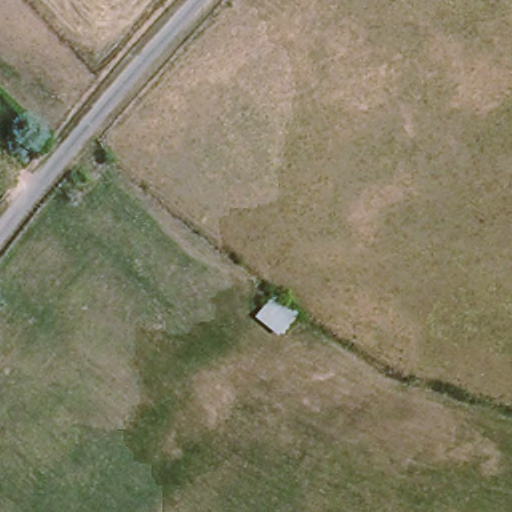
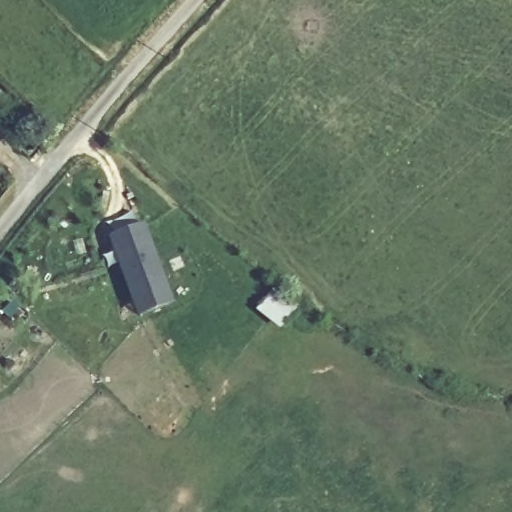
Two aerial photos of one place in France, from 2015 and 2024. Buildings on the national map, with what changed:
new [(141,313),(137,301),(115,236),(147,225),(168,291),(172,303),(141,313)]

